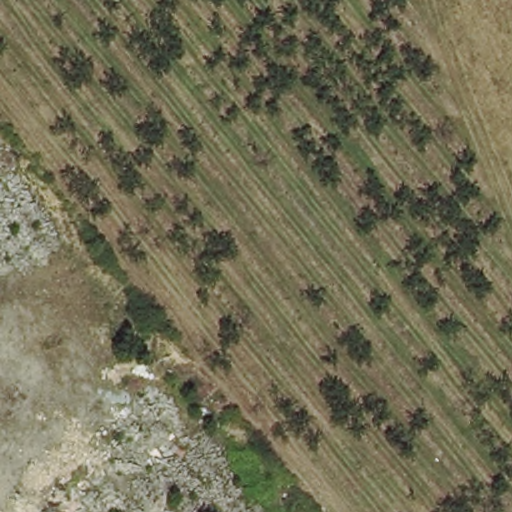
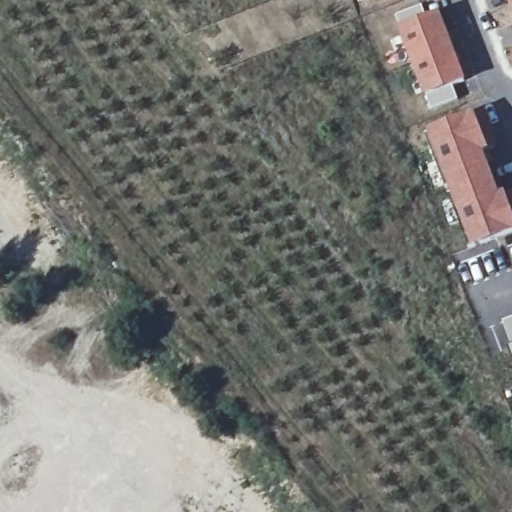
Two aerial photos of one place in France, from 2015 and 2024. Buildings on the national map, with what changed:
new [(373,1),(373,0),(376,0),(373,1)]
new [(510,0),(511,0),(512,0),(512,7),(510,0)]
new [(468,81),(455,87),(460,100),(433,110),(425,98),(399,29),(397,16),(425,5),(428,19),(443,13),(468,81)]
new [(492,151),(486,154),(502,195),(508,193),(512,205),(512,236),(471,249),(428,132),(475,113),(492,151)]
new [(512,257),(512,288),(475,301),(464,274),(512,257)]

